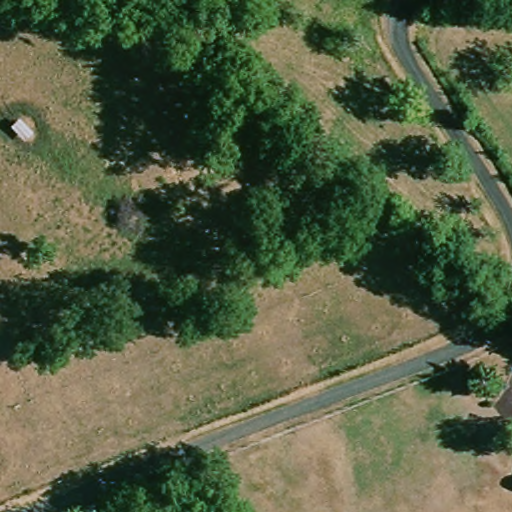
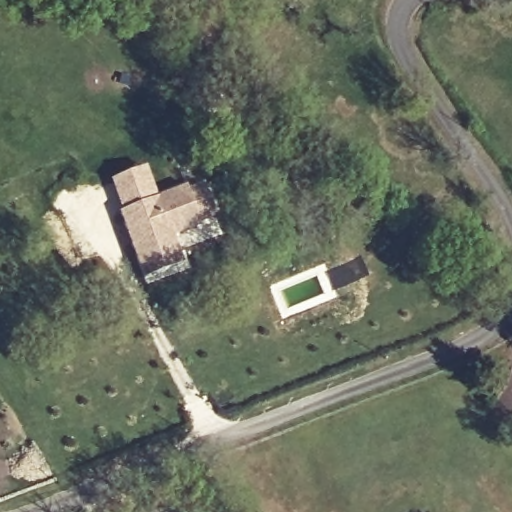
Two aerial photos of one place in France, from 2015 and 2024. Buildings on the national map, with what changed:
new [(158,199),(187,189),(188,192),(206,186),(218,220),(200,226),(201,229),(175,239),(184,265),(145,279),(111,181),(148,169),(158,199)]

